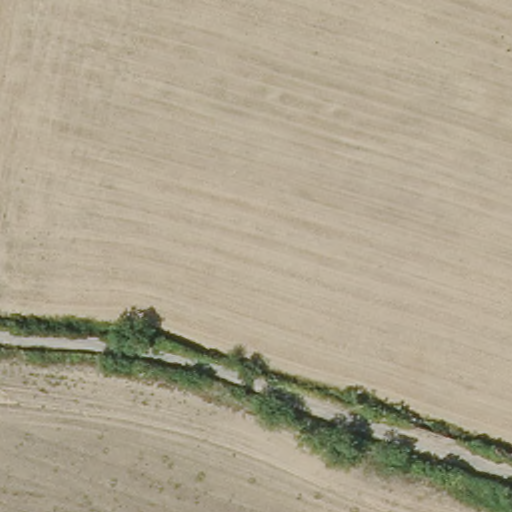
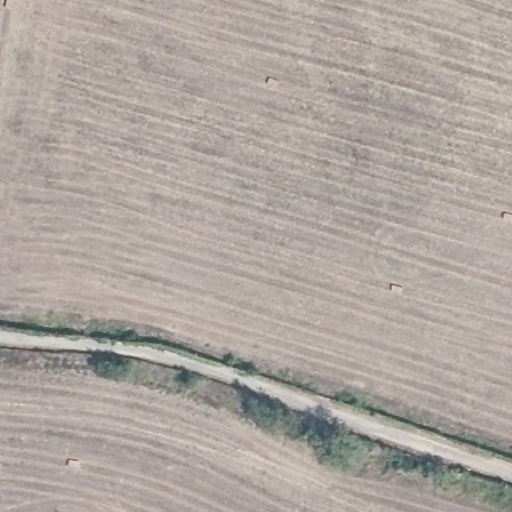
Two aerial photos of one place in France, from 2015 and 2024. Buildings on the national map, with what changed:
[]

